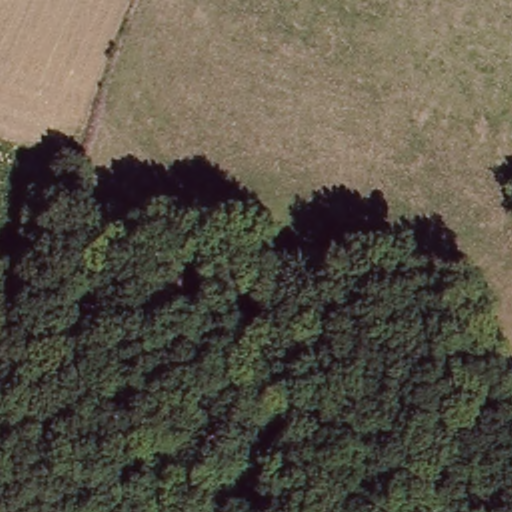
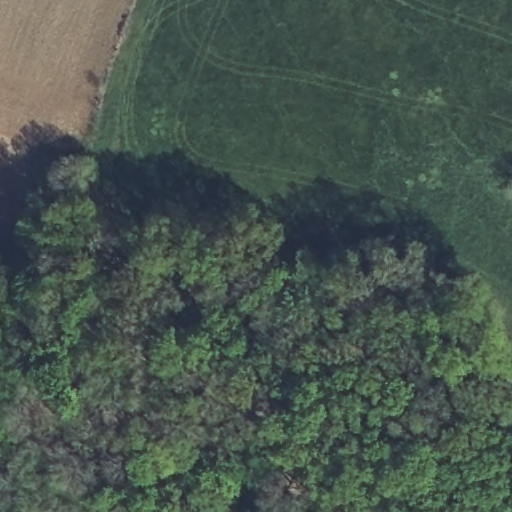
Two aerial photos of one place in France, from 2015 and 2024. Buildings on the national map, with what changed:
[]

